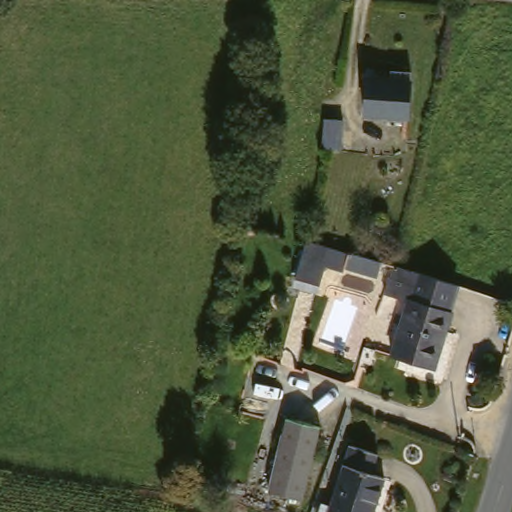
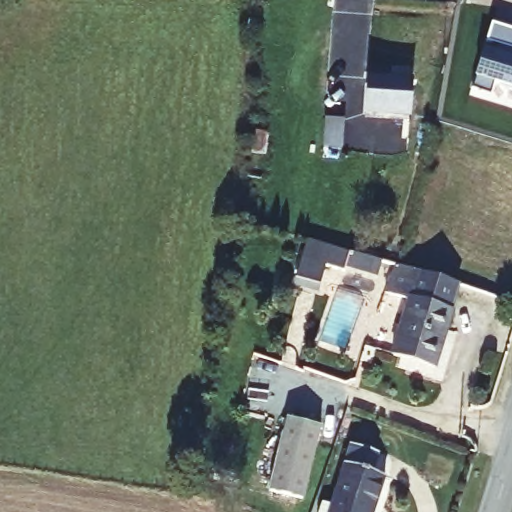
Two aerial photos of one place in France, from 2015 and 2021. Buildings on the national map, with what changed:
new [(485,48),(491,50),(494,41),(487,40),(492,21),(512,27),(512,84),(496,80),(492,92),(474,87),(485,48)]
unchanged [(366,113),(367,78),(390,80),(391,69),(411,71),(407,117),(366,113)]
unchanged [(331,170),(332,142),(335,142),(349,142),(348,170),(331,170)]
unchanged [(377,279),(346,268),(344,273),(325,266),(319,285),(300,279),(295,277),(307,242),(308,239),(351,254),(351,253),(355,254),(382,264),(377,279)]
unchanged [(388,356),(406,299),(382,291),(392,262),(458,284),(430,369),(388,356)]
unchanged [(270,489),(290,420),(319,428),(300,498),(270,489)]
unchanged [(331,502),(350,439),(379,449),(374,468),(383,472),(370,512),(318,512),(322,499),(331,502)]

